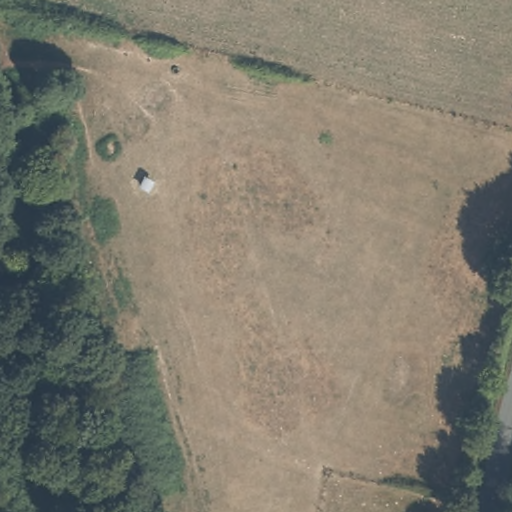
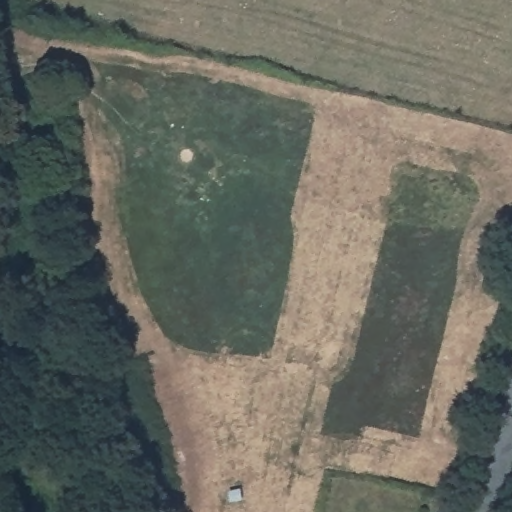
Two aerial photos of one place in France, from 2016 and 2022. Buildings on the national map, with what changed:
[]

